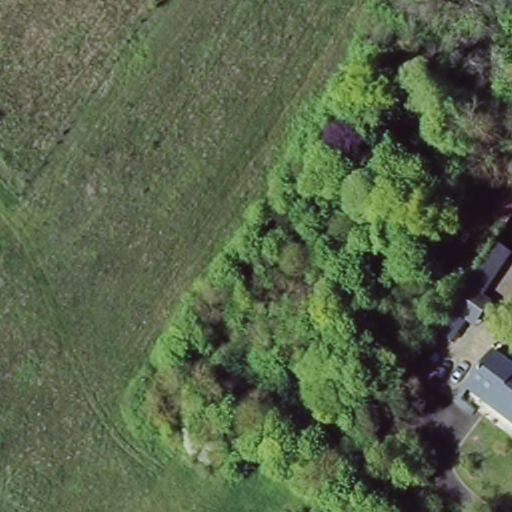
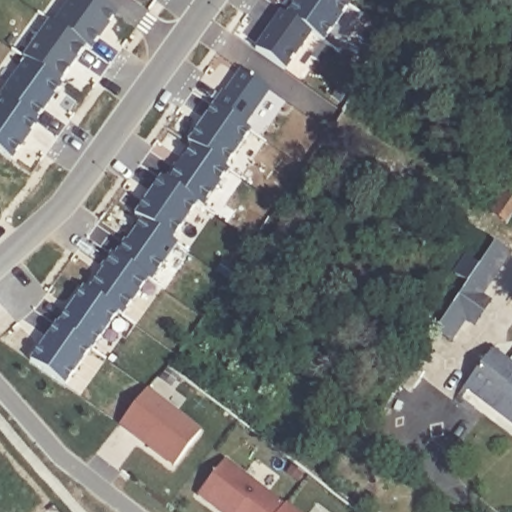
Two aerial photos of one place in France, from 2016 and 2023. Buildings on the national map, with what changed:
new [(22,57),(48,20),(55,25),(71,0),(96,0),(117,14),(93,52),(86,46),(12,160),(0,151),(0,95),(25,59),(22,57)]
new [(340,0),(348,5),(322,42),(286,16),(297,0),(340,0)]
new [(280,12),(311,35),(285,70),(255,47),(280,12)]
new [(222,92),(224,94),(241,70),(270,91),(245,126),(213,105),(222,92)]
new [(213,105),(245,126),(250,131),(225,168),(192,146),(187,142),(213,105)]
new [(192,146),(225,168),(228,170),(202,207),(197,204),(165,181),(176,167),(177,168),(192,146)]
new [(160,178),(165,181),(197,204),(171,240),(142,220),(135,215),(160,178)]
unchanged [(482,215),(502,189),(507,192),(512,184),(512,203),(497,225),(482,215)]
new [(124,241),(126,242),(142,220),(171,240),(176,245),(152,282),(149,280),(114,255),(124,241)]
new [(84,288),(87,291),(111,254),(149,280),(122,319),(116,315),(92,351),(89,349),(67,386),(32,362),(84,288)]
unchanged [(494,254),(511,265),(469,325),(453,347),(437,336),(494,254)]
unchanged [(512,365),(512,421),(464,385),(492,350),(512,365)]
new [(147,389),(200,429),(173,467),(119,425),(147,389)]
new [(224,460),(285,505),(287,503),(298,512),(218,512),(197,495),(224,460)]

